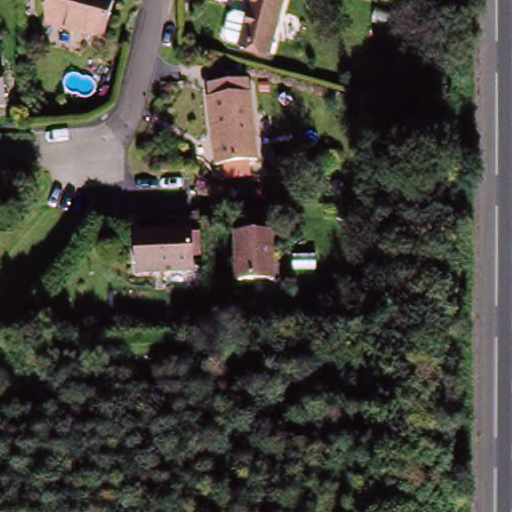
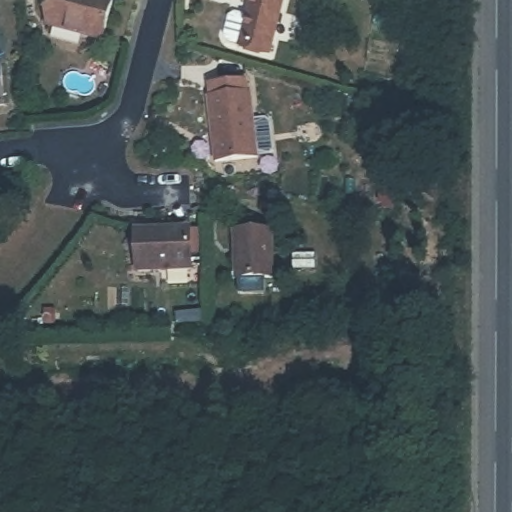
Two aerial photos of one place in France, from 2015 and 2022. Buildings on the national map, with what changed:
unchanged [(108,35),(52,29),(55,0),(112,0),(108,35)]
unchanged [(221,42),(226,22),(232,18),(244,21),(249,0),(280,0),(266,58),(237,51),(224,48),(221,42)]
unchanged [(3,64),(7,105),(0,106),(0,64),(3,64)]
unchanged [(217,166),(210,103),(214,102),(212,90),(226,88),(248,85),(250,98),(252,98),(260,161),(217,166)]
unchanged [(194,268),(139,269),(138,229),(193,227),(194,268)]
unchanged [(277,278),(243,278),(243,262),(241,262),(241,232),(278,232),(277,278)]

